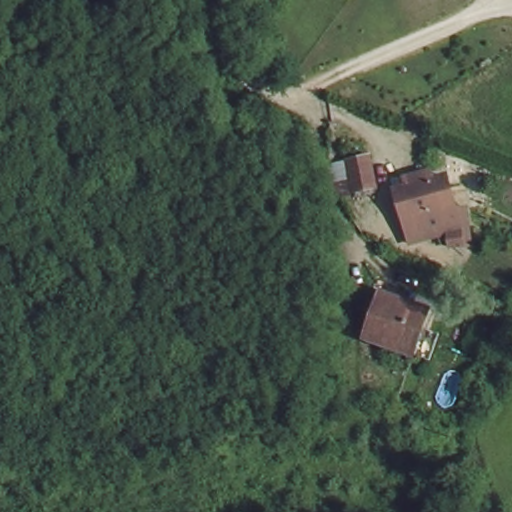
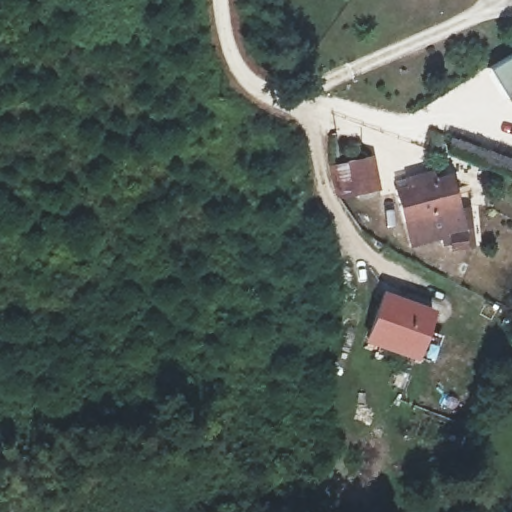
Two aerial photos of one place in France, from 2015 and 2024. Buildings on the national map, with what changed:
new [(512,53),(512,98),(507,101),(488,67),(512,53)]
unchanged [(375,156),(384,190),(340,202),(339,200),(331,168),(375,156)]
unchanged [(448,268),(446,254),(399,259),(392,196),(410,191),(408,177),(436,175),(456,174),(459,204),(471,203),(476,250),(463,252),(464,266),(448,268)]
unchanged [(431,324),(422,355),(372,339),(381,305),(431,324)]

